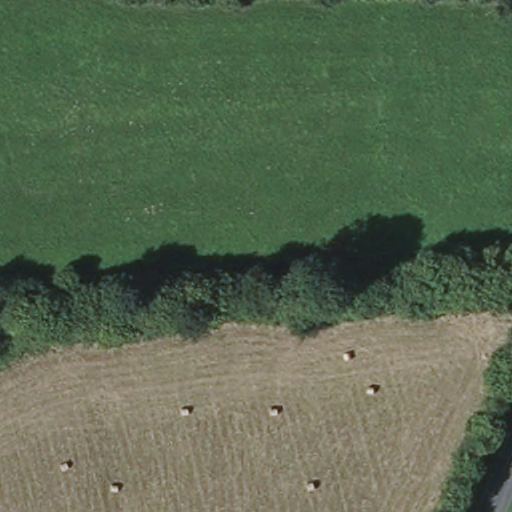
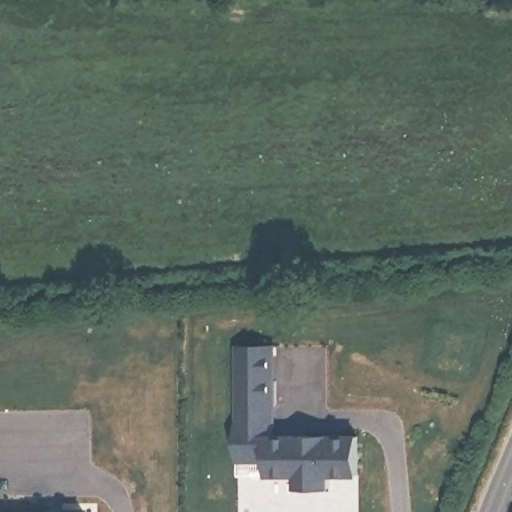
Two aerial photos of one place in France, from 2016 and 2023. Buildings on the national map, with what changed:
new [(281,347),(281,435),(360,436),(362,480),(333,481),(333,493),(298,493),(297,481),(264,481),(262,463),(238,463),(237,346),(281,347)]
new [(11,509),(91,509),(91,512),(0,512),(0,496),(10,495),(11,509)]

